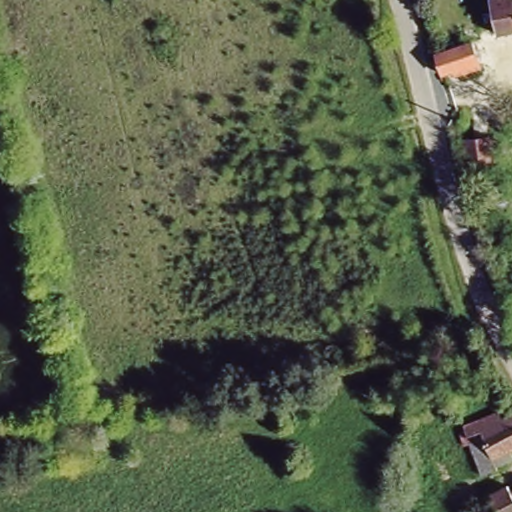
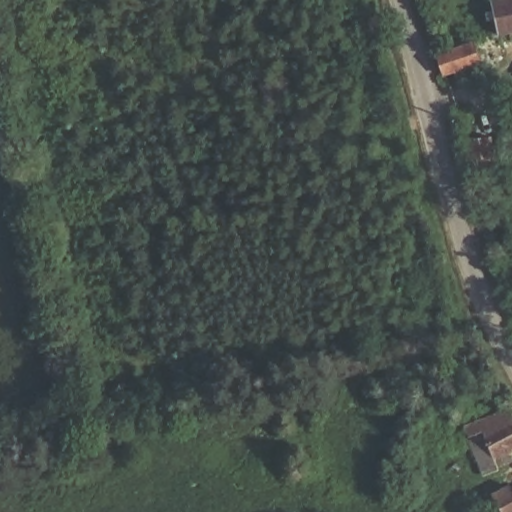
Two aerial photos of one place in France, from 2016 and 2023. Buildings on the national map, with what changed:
unchanged [(512,32),(497,36),(489,2),(497,0),(512,0),(512,32)]
unchanged [(482,63),(456,72),(455,67),(442,71),(437,50),(473,37),(482,63)]
unchanged [(484,131),(489,164),(466,168),(461,135),(484,131)]
unchanged [(485,478),(474,450),(465,449),(463,445),(471,439),(468,431),(512,413),(512,465),(497,471),(498,473),(485,478)]
unchanged [(509,488),(512,493),(512,512),(502,512),(493,497),(509,488)]

